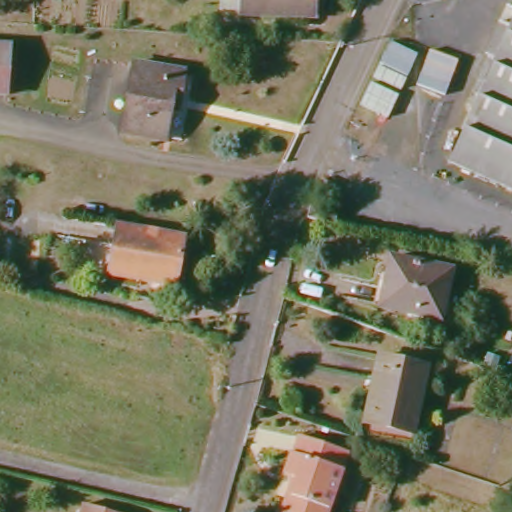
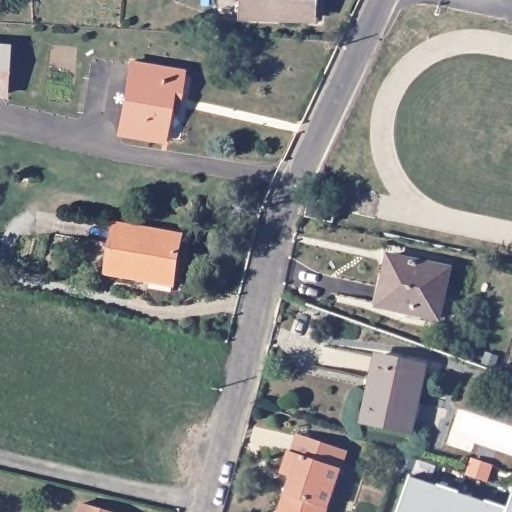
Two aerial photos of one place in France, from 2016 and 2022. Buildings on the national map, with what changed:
unchanged [(313,0),(312,17),(286,16),(285,21),(240,19),(241,0),(313,0)]
demolished [(512,13),(512,189),(446,160),(512,13)]
unchanged [(4,44),(2,94),(0,94),(0,44),(4,44)]
unchanged [(131,60),(182,68),(178,96),(172,95),(164,138),(120,131),(131,60)]
unchanged [(320,179),(331,184),(322,200),(312,195),(320,179)]
unchanged [(309,201),(335,206),(332,222),(305,217),(309,201)]
unchanged [(116,228),(116,225),(182,236),(175,285),(109,274),(116,228)]
unchanged [(389,274),(383,273),(388,254),(446,268),(436,319),(381,305),(389,274)]
unchanged [(381,385),(372,383),(378,359),(425,368),(411,434),(372,424),(381,385)]
unchanged [(293,479),(283,475),(290,454),(292,454),(297,438),(343,454),(325,512),(282,512),(293,479)]
new [(411,476),(510,509),(512,503),(512,512),(399,512),(411,476)]
unchanged [(83,506),(104,512),(81,512),(83,506)]

